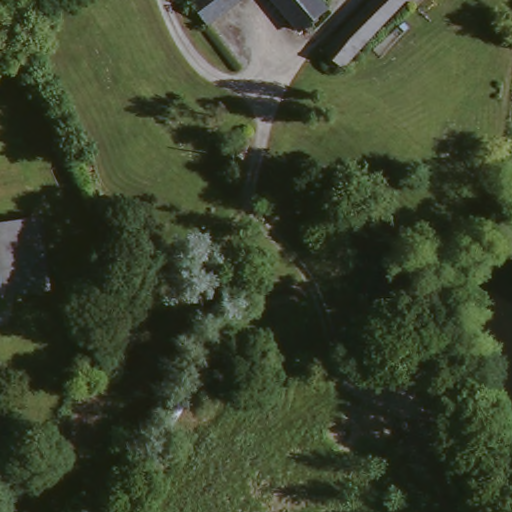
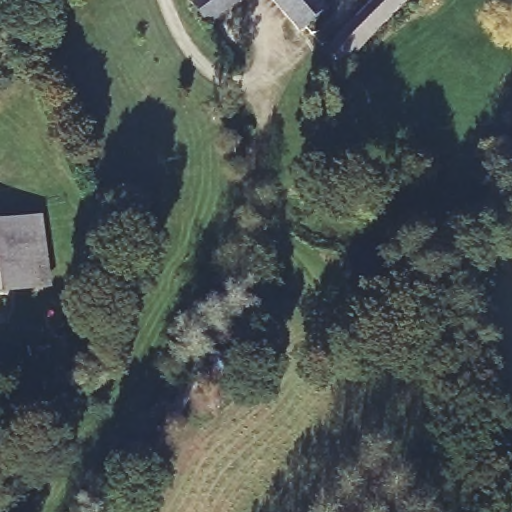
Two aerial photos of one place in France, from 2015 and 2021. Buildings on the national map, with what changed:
unchanged [(198,2),(201,0),(238,0),(213,19),(198,2)]
unchanged [(282,0),(326,0),(332,7),(308,30),(282,0)]
unchanged [(321,60),(333,50),(328,44),(346,27),(377,0),(411,0),(418,6),(335,81),(321,60)]
unchanged [(4,222),(41,219),(51,290),(14,294),(4,222)]
unchanged [(14,294),(0,296),(0,222),(4,222),(14,294)]
unchanged [(0,370),(0,346),(5,369),(0,370)]

